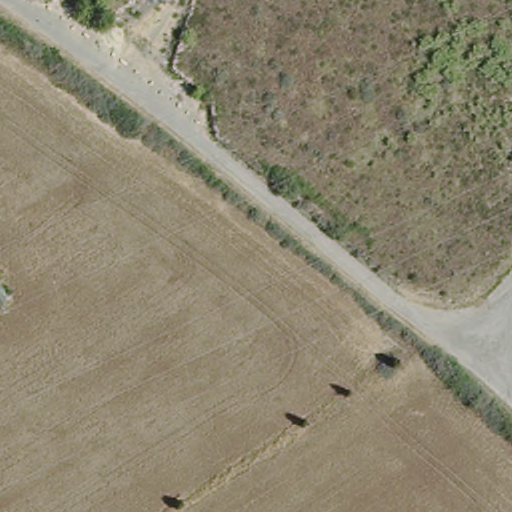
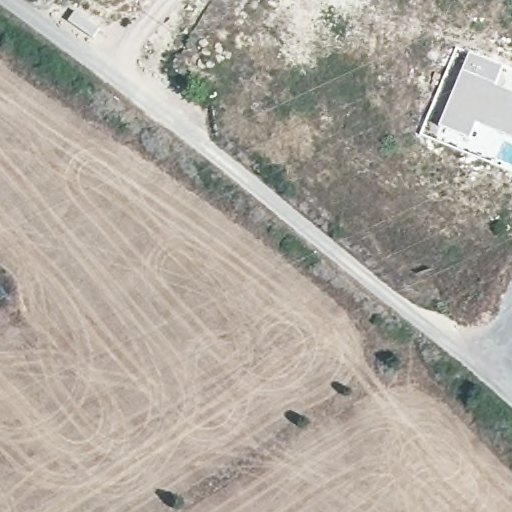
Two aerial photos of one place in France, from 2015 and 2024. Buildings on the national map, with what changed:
new [(468,51),(504,66),(497,85),(512,91),(512,140),(477,125),(470,140),(438,126),(468,51)]

